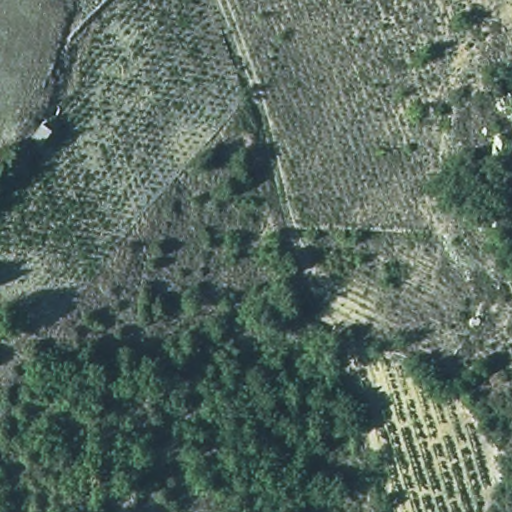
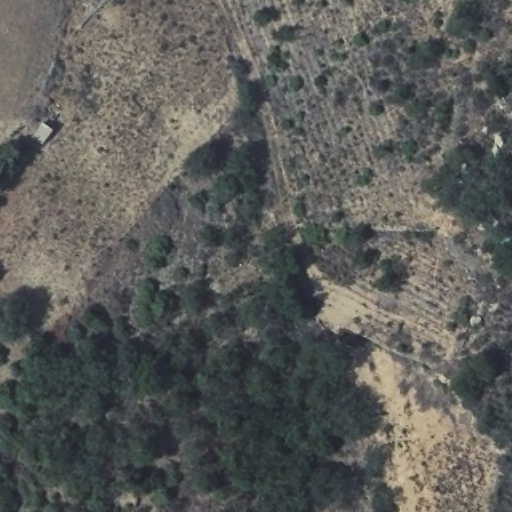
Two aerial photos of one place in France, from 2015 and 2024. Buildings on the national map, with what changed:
unchanged [(30,141),(42,121),(55,128),(45,148),(30,141)]

